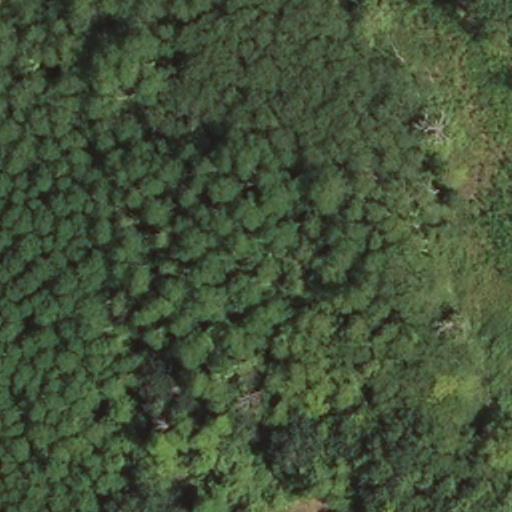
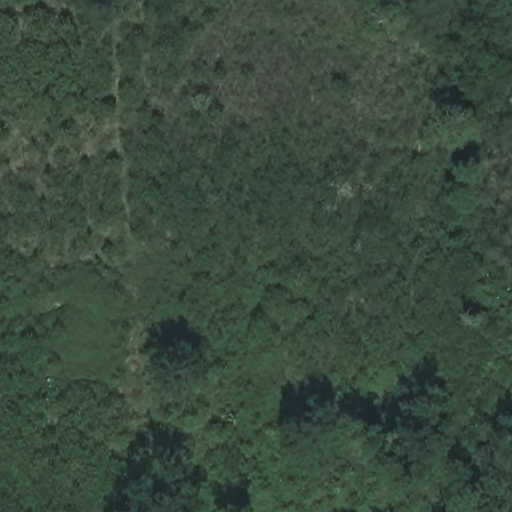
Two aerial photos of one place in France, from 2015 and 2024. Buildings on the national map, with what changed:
[]

